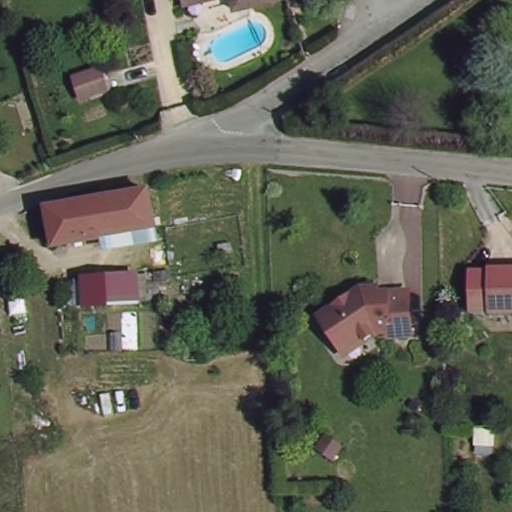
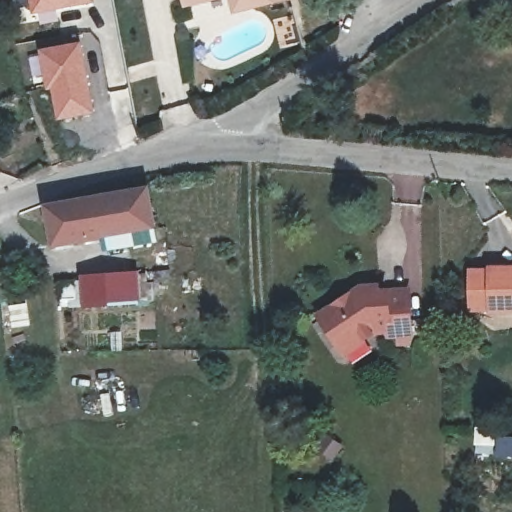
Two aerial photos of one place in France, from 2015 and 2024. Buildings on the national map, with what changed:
new [(60,11),(61,21),(40,26),(37,14),(36,14),(32,13),(30,0),(97,0),(97,3),(60,11)]
unchanged [(204,3),(203,0),(218,0),(204,3)]
unchanged [(252,8),(237,12),(234,0),(286,0),(252,8)]
new [(84,41),(98,114),(57,122),(51,91),(47,91),(38,50),(84,41)]
demolished [(82,100),(72,73),(104,63),(113,90),(82,100)]
unchanged [(153,197),(158,233),(114,240),(108,204),(153,197)]
unchanged [(58,249),(53,213),(108,204),(114,240),(58,249)]
unchanged [(495,314),(475,315),(472,276),(493,275),(493,272),(512,272),(512,314),(495,314)]
unchanged [(87,308),(83,281),(135,274),(137,301),(118,304),(87,308)]
unchanged [(365,282),(378,281),(381,299),(392,297),(390,289),(407,287),(413,324),(397,327),(392,322),(382,323),(348,346),(325,313),(365,282)]

